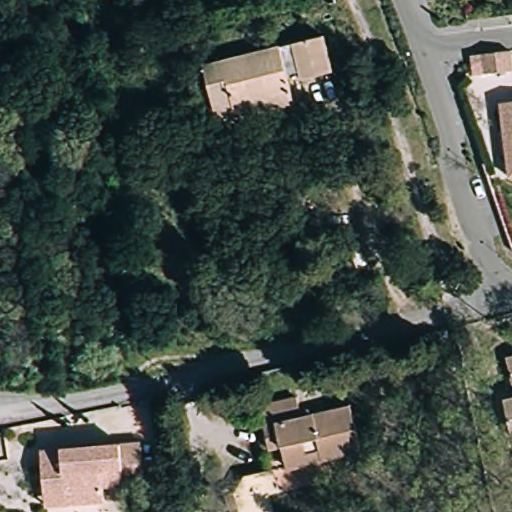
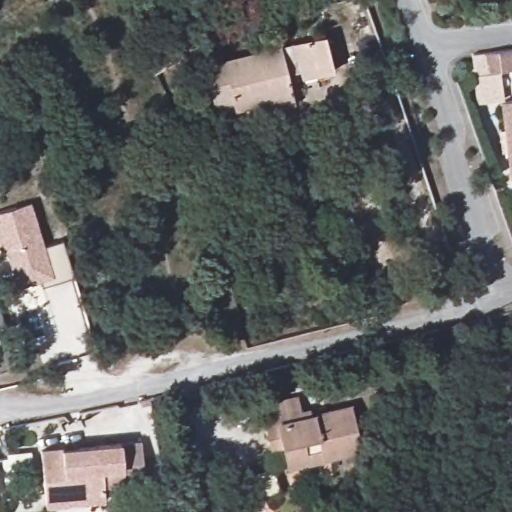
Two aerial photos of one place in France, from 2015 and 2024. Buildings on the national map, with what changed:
unchanged [(204,66),(324,35),(334,71),(302,79),(300,71),(288,74),(292,91),(295,103),(253,114),(251,105),(234,109),(216,114),(213,102),(204,66)]
unchanged [(512,70),(487,73),(484,54),(512,50),(512,54),(512,70)]
unchanged [(496,97),(512,96),(512,171),(506,171),(496,97)]
new [(17,287),(6,249),(0,251),(0,212),(31,202),(44,246),(64,240),(75,277),(43,287),(41,279),(17,287)]
unchanged [(285,459),(282,446),(270,449),(260,405),(298,396),(303,417),(351,406),(362,451),(323,461),(287,469),(285,459)]
unchanged [(512,399),(512,406),(510,399),(512,399)]
unchanged [(44,487),(41,450),(141,442),(145,482),(104,486),(105,501),(66,505),(46,506),(44,487)]
new [(8,459),(7,455),(31,452),(32,466),(13,467),(16,482),(6,484),(2,460),(8,459)]

